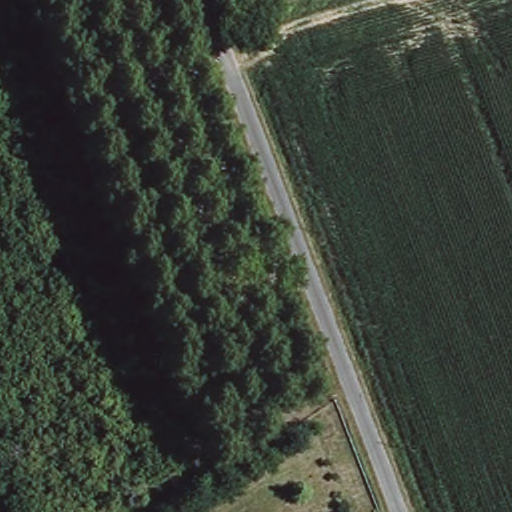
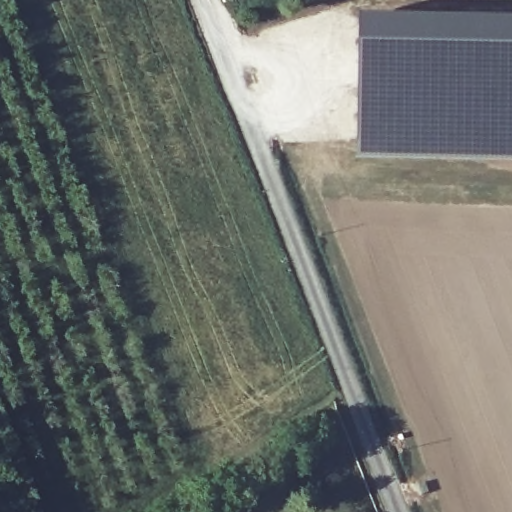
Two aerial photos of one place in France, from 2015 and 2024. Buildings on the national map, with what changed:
new [(512,17),(512,163),(358,159),(360,14),(512,17)]

